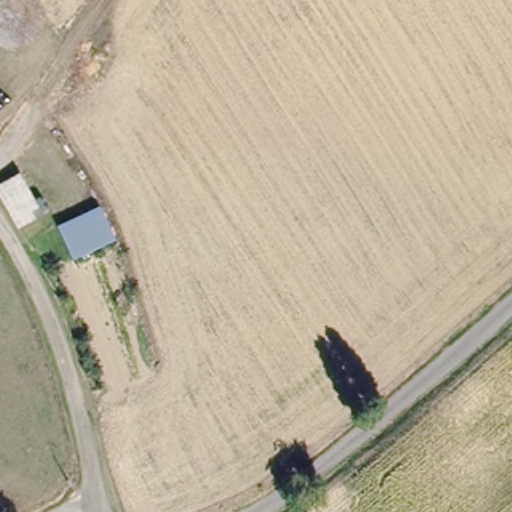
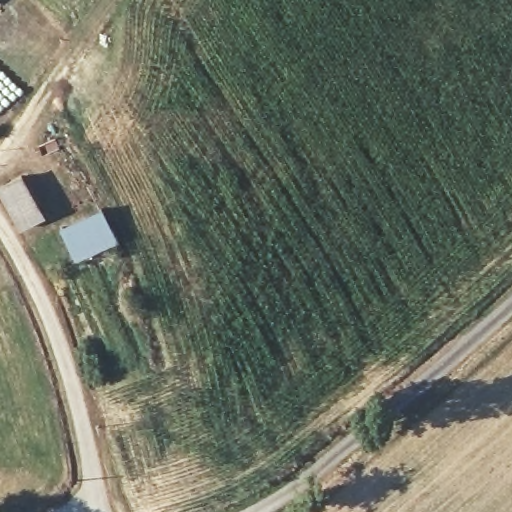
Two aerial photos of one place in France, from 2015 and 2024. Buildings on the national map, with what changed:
unchanged [(0,191),(0,185),(22,172),(43,216),(20,228),(0,191)]
unchanged [(114,240),(82,260),(77,251),(64,228),(96,208),(109,232),(114,240)]

